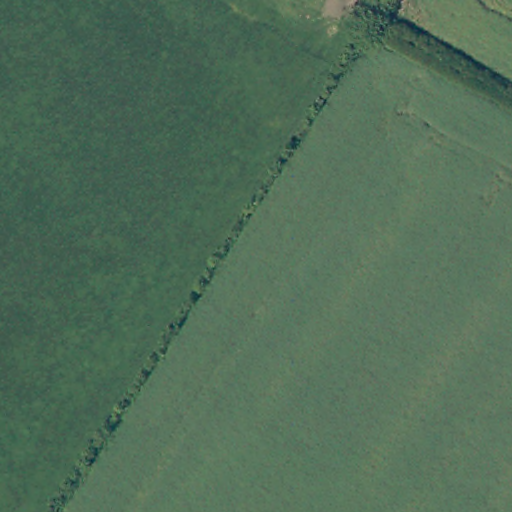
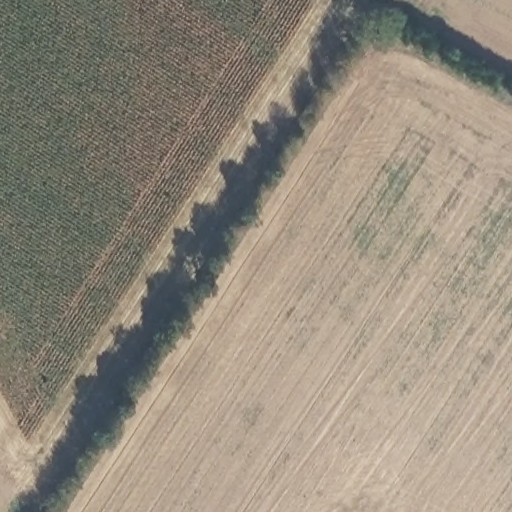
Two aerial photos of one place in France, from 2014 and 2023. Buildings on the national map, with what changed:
[]

